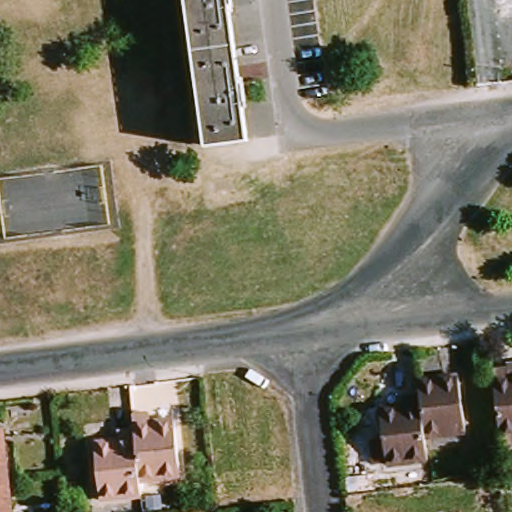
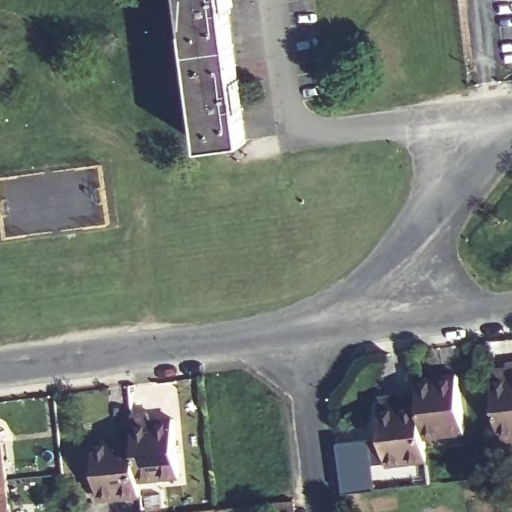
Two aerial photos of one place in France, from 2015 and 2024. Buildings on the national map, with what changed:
unchanged [(205,150),(184,0),(226,0),(246,144),(205,150)]
unchanged [(501,448),(494,385),(492,368),(507,366),(507,362),(512,361),(512,447),(501,448)]
unchanged [(418,402),(415,384),(457,379),(463,435),(422,440),(418,402)]
unchanged [(422,440),(425,464),(385,469),(379,412),(402,410),(402,404),(418,402),(422,440)]
unchanged [(148,419),(149,426),(170,423),(177,480),(138,485),(132,436),(131,421),(148,419)]
unchanged [(114,445),(114,438),(132,436),(138,485),(140,499),(99,503),(92,447),(114,445)]
new [(385,463),(374,464),(377,489),(344,493),(339,443),(382,436),(385,463)]
unchanged [(0,485),(0,437),(5,485),(0,485)]
unchanged [(8,512),(0,512),(0,485),(5,485),(8,512)]

